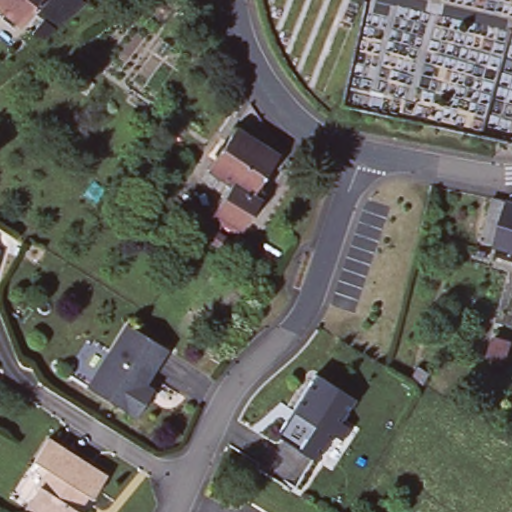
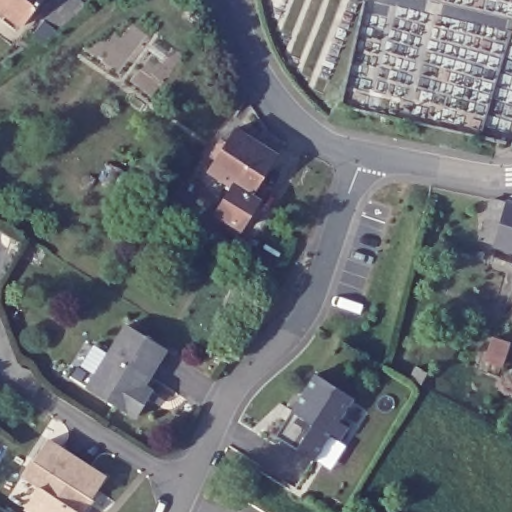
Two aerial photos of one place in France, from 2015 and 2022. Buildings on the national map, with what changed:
unchanged [(15,26),(0,13),(0,0),(36,0),(15,26)]
unchanged [(83,5),(51,31),(32,16),(45,0),(77,0),(83,5)]
unchanged [(208,170),(234,127),(277,154),(251,195),(251,196),(232,185),(208,170)]
unchanged [(251,196),(251,195),(259,199),(240,228),(221,217),(219,220),(212,216),(232,185),(251,196)]
unchanged [(493,247),(479,243),(484,224),(489,208),(491,203),(497,205),(505,207),(512,209),(512,255),(492,249),(493,247)]
unchanged [(248,242),(251,244),(243,257),(239,254),(229,248),(237,236),(248,242)]
unchanged [(151,398),(139,417),(100,392),(108,379),(99,374),(102,369),(113,353),(131,324),(170,348),(148,384),(156,389),(151,398)]
unchanged [(508,341),(500,365),(486,361),(493,336),(508,341)]
unchanged [(113,353),(102,369),(99,374),(108,379),(100,392),(75,376),(80,368),(75,364),(90,338),(113,353)]
unchanged [(427,372),(421,383),(409,377),(416,366),(427,372)]
unchanged [(352,399),(313,459),(281,438),(279,431),(286,420),(292,410),(316,374),(352,399)]
unchanged [(38,486),(48,470),(33,460),(47,438),(105,476),(91,498),(82,512),(32,512),(24,507),(38,486)]

